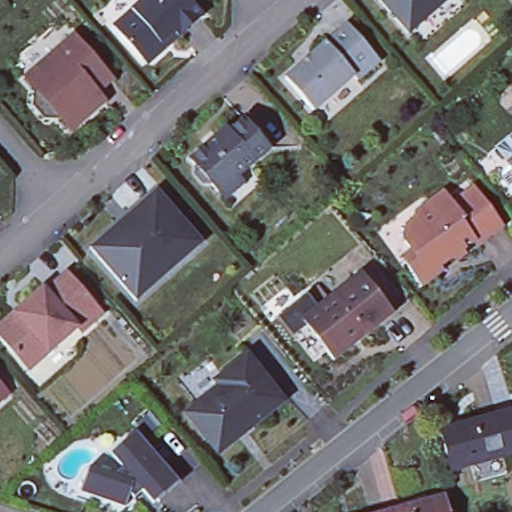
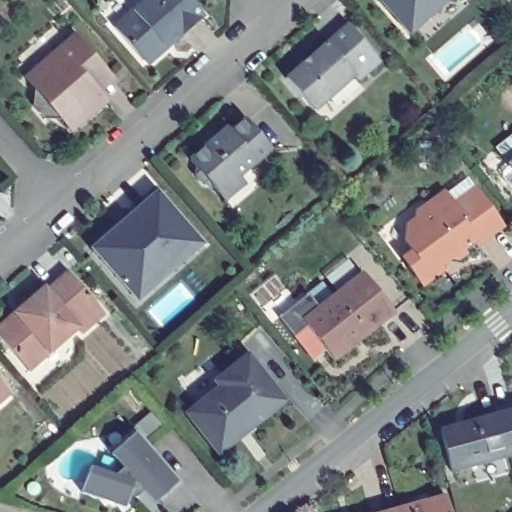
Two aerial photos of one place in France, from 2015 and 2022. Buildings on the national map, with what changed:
unchanged [(150,54),(147,56),(117,22),(105,7),(113,0),(197,0),(207,12),(183,34),(172,44),(157,57),(150,54)]
unchanged [(378,0),(441,0),(405,32),(378,0)]
unchanged [(343,22),(375,59),(353,78),(348,72),(322,42),(343,22)]
unchanged [(98,68),(83,82),(99,100),(65,129),(20,77),(70,35),(98,68)]
unchanged [(348,72),(310,107),(282,76),(322,42),(348,72)]
unchanged [(220,195),(214,188),(205,179),(198,178),(192,171),(192,162),(187,156),(222,124),(225,128),(240,115),(265,144),(234,171),(240,177),(220,195)]
unchanged [(512,160),(512,166),(509,162),(512,160)]
unchanged [(472,192),(502,227),(480,247),(476,242),(464,253),(467,257),(460,262),(455,262),(450,257),(442,266),(445,268),(442,271),(442,279),(427,291),(412,272),(420,266),(407,250),(409,232),(416,227),(417,219),(430,208),(432,211),(443,201),(452,210),(472,192)]
unchanged [(193,237),(161,266),(171,277),(137,306),(91,253),(157,195),(193,237)]
unchanged [(0,320),(15,307),(28,296),(43,282),(46,286),(67,267),(95,297),(105,308),(100,313),(82,330),(77,323),(35,361),(29,367),(15,351),(0,333),(0,320)]
unchanged [(395,311),(337,360),(305,322),(362,273),(395,311)]
unchanged [(218,458),(187,418),(221,392),(215,386),(247,361),(283,407),(254,430),(237,443),(218,458)]
unchanged [(0,406),(0,387),(10,398),(0,406)]
unchanged [(505,415),(512,413),(512,441),(505,415)]
unchanged [(460,470),(449,431),(505,415),(512,441),(512,455),(460,470)]
unchanged [(178,488),(155,509),(143,496),(135,503),(131,499),(126,511),(81,496),(89,471),(113,479),(123,473),(116,465),(112,459),(123,449),(135,439),(178,488)]
unchanged [(450,492),(455,512),(394,512),(393,507),(450,492)]
unchanged [(394,512),(376,512),(393,507),(394,512)]

